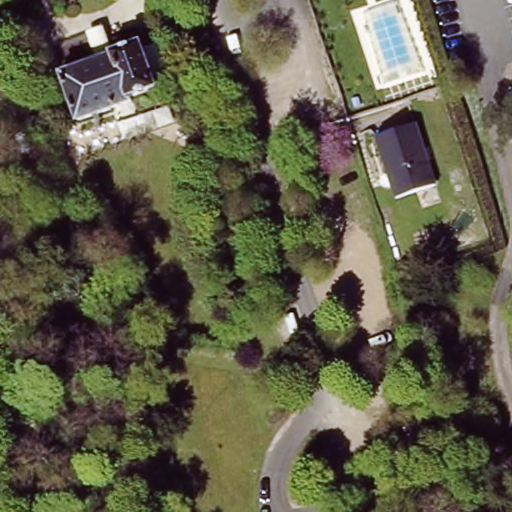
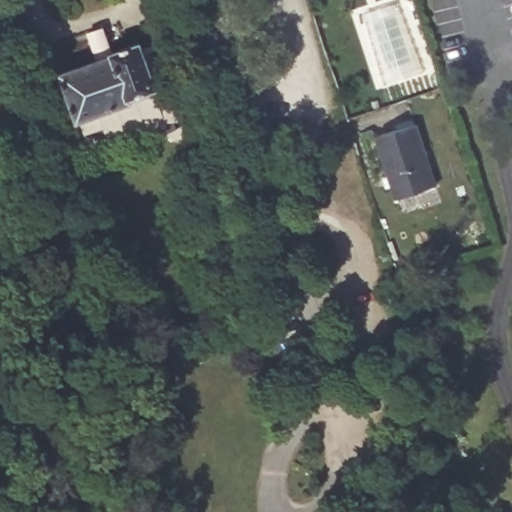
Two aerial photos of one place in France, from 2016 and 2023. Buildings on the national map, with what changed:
unchanged [(92,28),(108,21),(117,47),(145,37),(162,82),(135,92),(137,96),(83,116),(66,69),(102,56),(92,28)]
unchanged [(430,190),(390,203),(370,141),(409,129),(430,190)]

